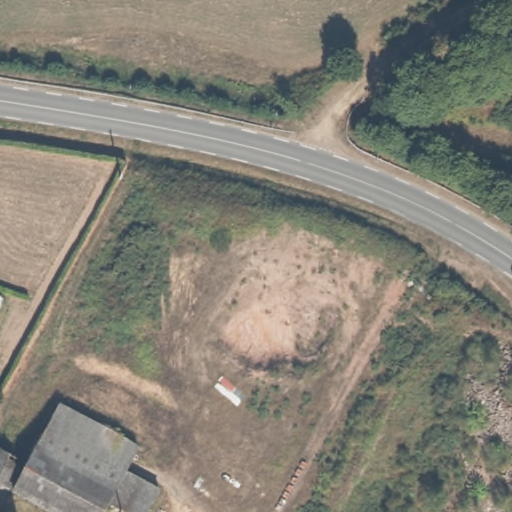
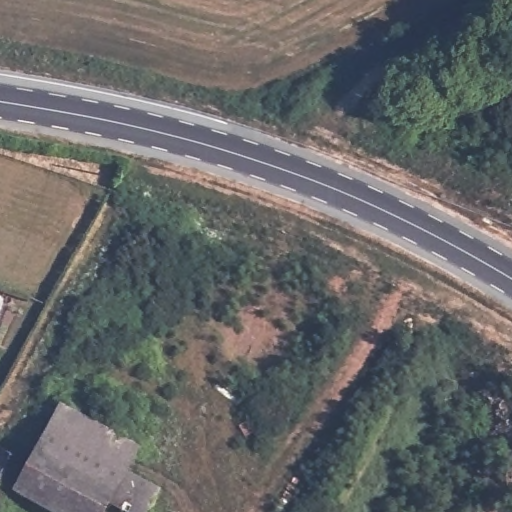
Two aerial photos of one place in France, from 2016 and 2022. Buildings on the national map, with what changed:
unchanged [(64,400),(137,442),(122,468),(49,427),(64,400)]
unchanged [(143,512),(119,512),(102,504),(98,512),(47,512),(11,494),(49,427),(122,468),(156,488),(143,512)]
unchanged [(20,466),(0,499),(0,454),(20,466)]

